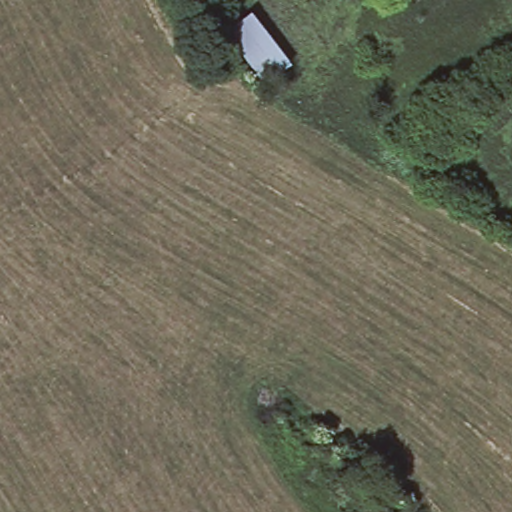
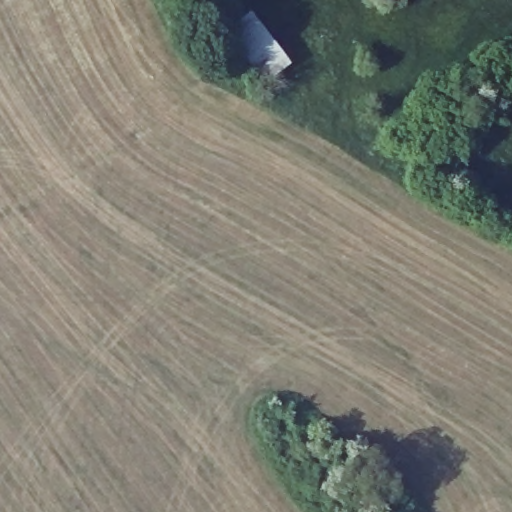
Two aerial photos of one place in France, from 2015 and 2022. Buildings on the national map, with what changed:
unchanged [(253,11),(289,60),(265,76),(228,29),(253,11)]

